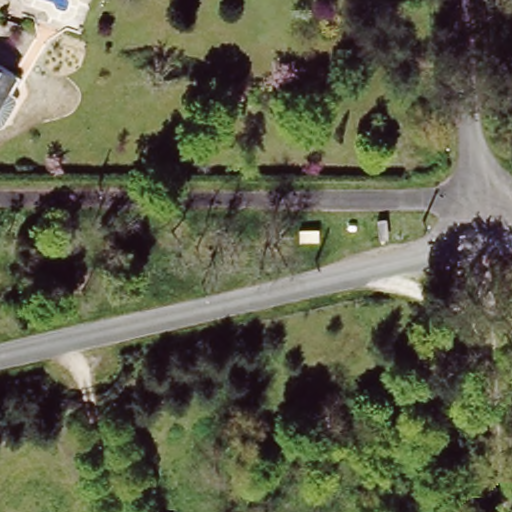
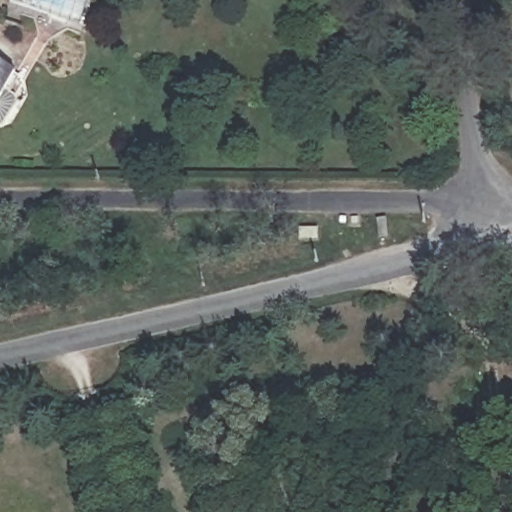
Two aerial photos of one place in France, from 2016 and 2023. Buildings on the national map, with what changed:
unchanged [(15,73),(0,99),(0,65),(15,73)]

